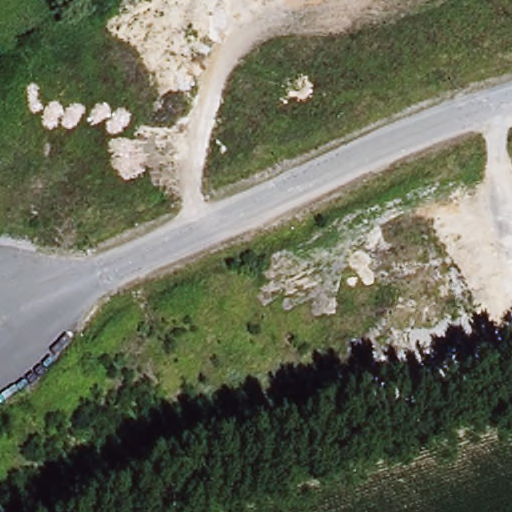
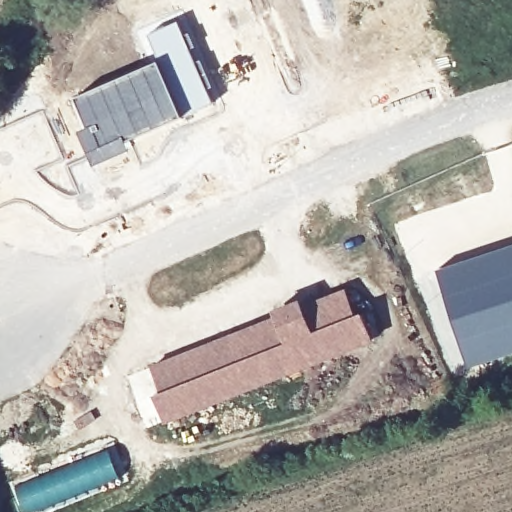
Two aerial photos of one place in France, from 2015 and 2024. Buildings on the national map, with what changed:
new [(180,17),(197,54),(201,53),(216,85),(211,87),(216,100),(186,112),(159,57),(148,34),(180,17)]
new [(159,57),(186,112),(129,140),(132,147),(98,162),(82,127),(88,124),(75,96),(159,57)]
new [(460,215),(469,236),(422,257),(413,237),(460,215)]
new [(512,352),(471,365),(438,268),(512,243),(512,352)]
new [(304,304),(349,286),(359,310),(365,307),(376,335),(168,417),(157,391),(164,388),(153,363),(281,312),(304,304)]

